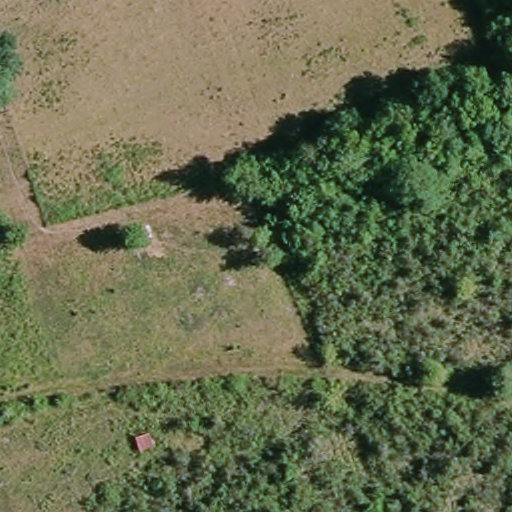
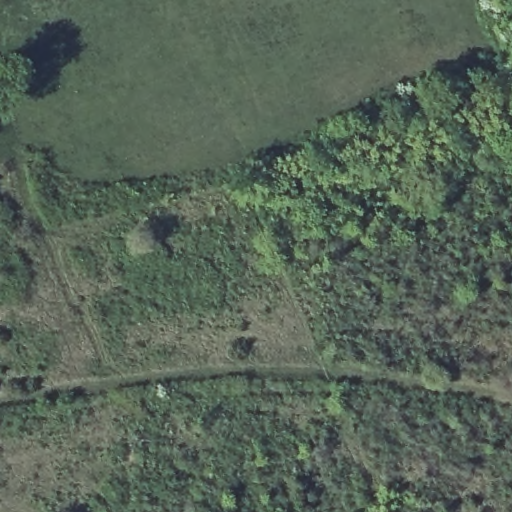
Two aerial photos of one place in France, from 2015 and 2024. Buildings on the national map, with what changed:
[]

